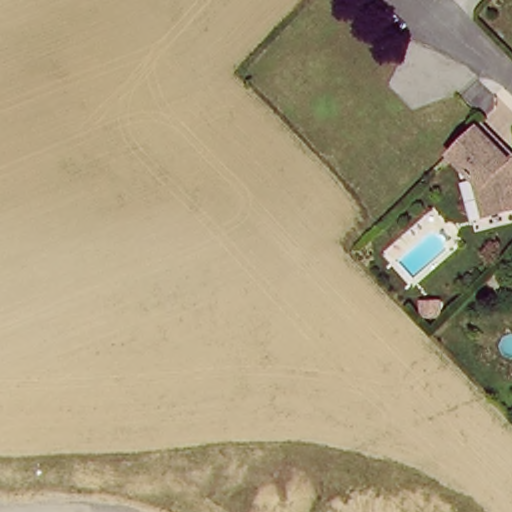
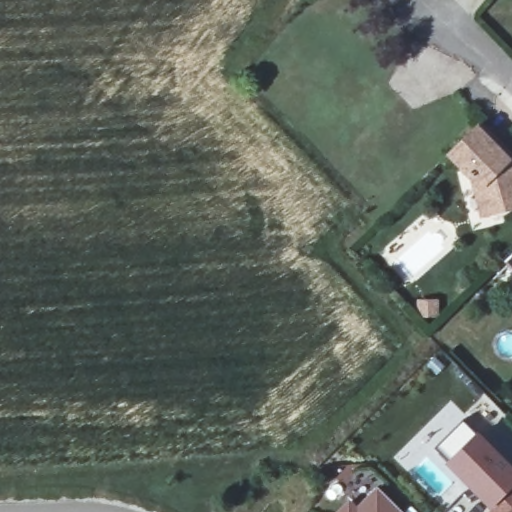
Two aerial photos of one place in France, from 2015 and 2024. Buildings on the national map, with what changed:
unchanged [(476,205),(483,203),(482,198),(445,155),(472,126),(507,164),(512,164),(512,217),(486,222),(479,223),(476,205)]
new [(490,512),(445,464),(449,460),(434,448),(462,421),(477,434),(479,432),(512,465),(512,488),(492,509),(490,512)]
new [(349,499),(357,508),(377,487),(402,512),(336,512),(349,499)]
new [(492,509),(512,488),(512,512),(496,512),(492,509)]

